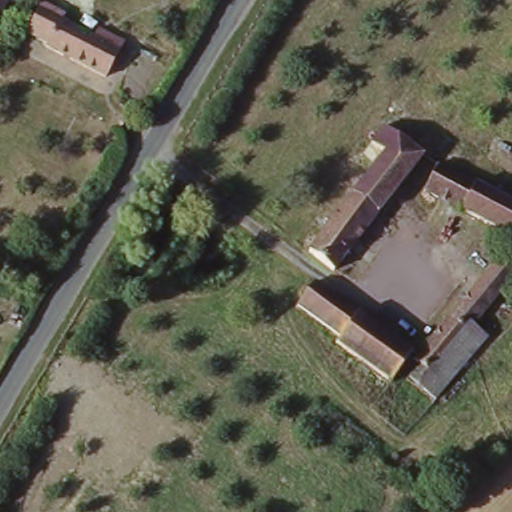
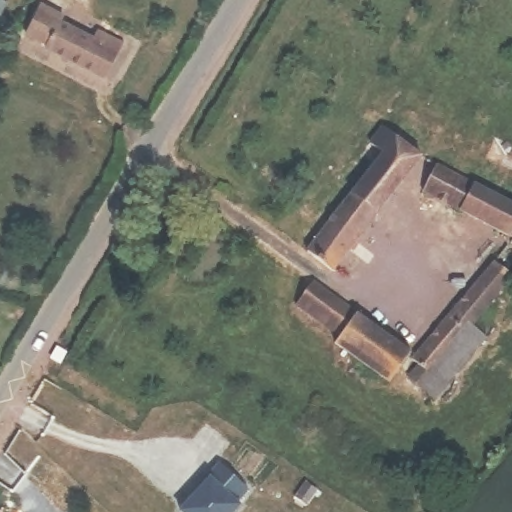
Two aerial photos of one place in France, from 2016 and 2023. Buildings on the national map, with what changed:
unchanged [(48,55),(50,52),(24,39),(43,3),(66,14),(61,25),(91,39),(96,29),(121,42),(118,51),(105,82),(48,55)]
unchanged [(343,184),(372,146),(387,126),(396,115),(417,130),(408,142),(426,152),(337,270),(328,263),(314,253),(357,194),(343,184)]
unchanged [(429,193),(443,167),(512,204),(512,233),(509,237),(429,193)]
unchanged [(509,280),(472,327),(437,373),(421,362),(418,360),(489,263),(509,280)]
unchanged [(413,352),(411,355),(396,383),(340,348),(332,343),(338,335),(321,323),(314,335),(292,320),(300,309),(317,285),(413,352)]
unchanged [(485,338),(438,400),(410,377),(421,362),(437,373),(472,327),(485,338)]
new [(200,490),(197,488),(221,463),(249,490),(238,503),(240,506),(234,512),(182,512),(181,511),(200,490)]

